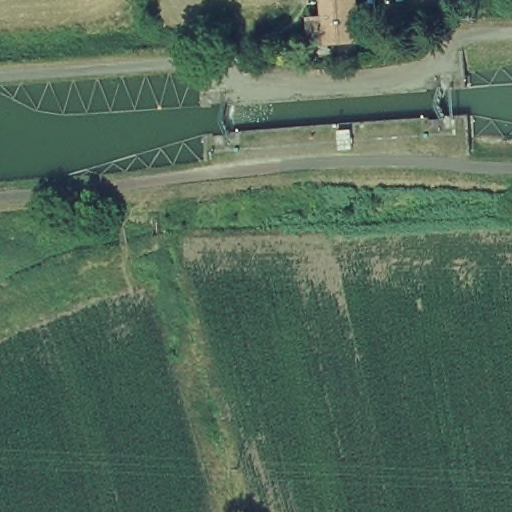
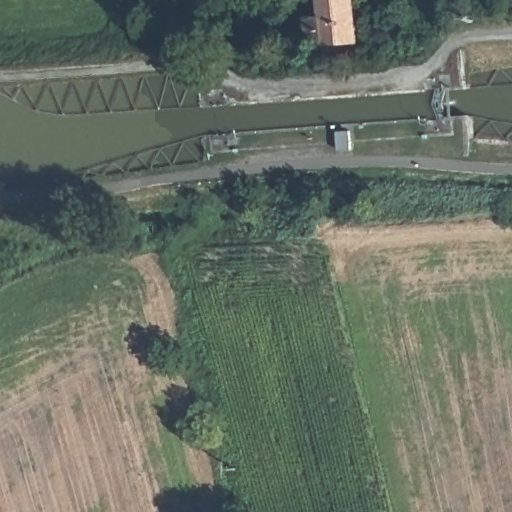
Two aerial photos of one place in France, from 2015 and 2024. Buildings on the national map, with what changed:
unchanged [(303,14),(322,13),(322,0),(362,0),(364,42),(305,50),(303,14)]

